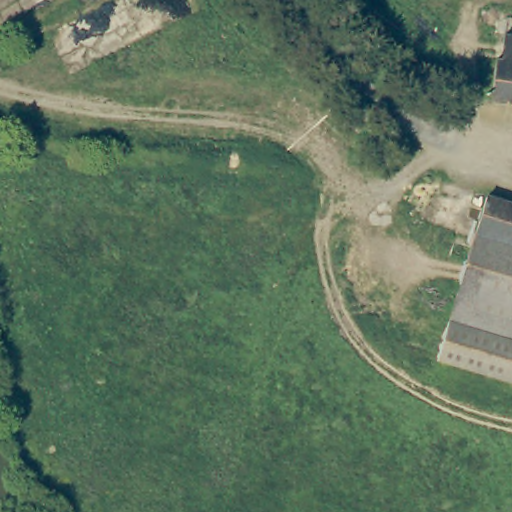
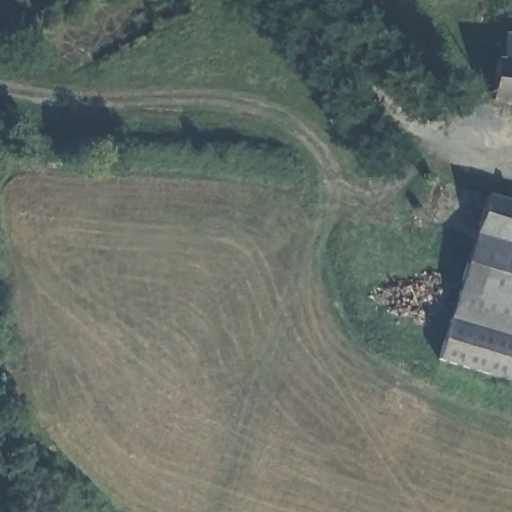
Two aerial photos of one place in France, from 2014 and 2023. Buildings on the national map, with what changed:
unchanged [(512,64),(500,62),(504,36),(512,37),(512,64)]
unchanged [(494,61),(500,62),(512,64),(512,101),(489,99),(494,61)]
unchanged [(512,198),(512,240),(473,229),(484,190),(512,198)]
unchanged [(473,229),(512,240),(512,334),(448,316),(473,229)]
unchanged [(512,378),(437,356),(448,316),(512,334),(512,378)]

